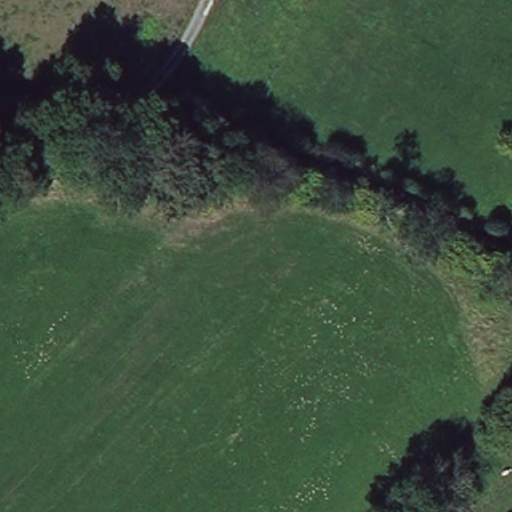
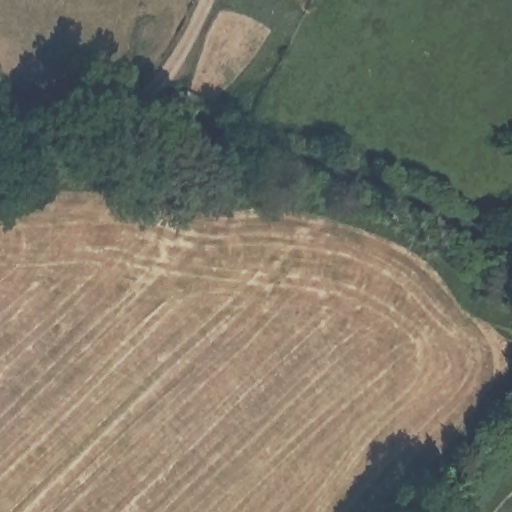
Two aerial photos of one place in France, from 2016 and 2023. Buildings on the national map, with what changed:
unchanged [(187,92),(205,100),(198,116),(180,107),(187,92)]

